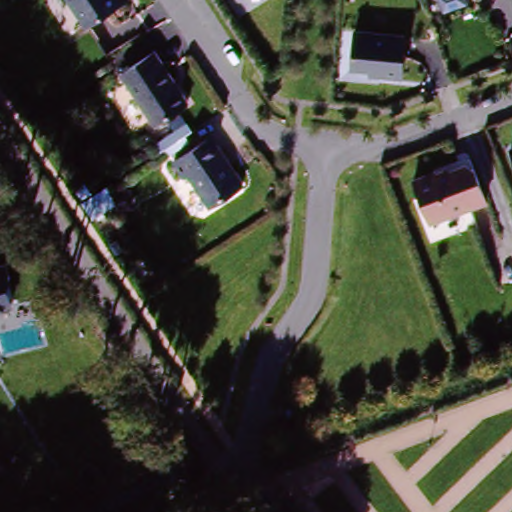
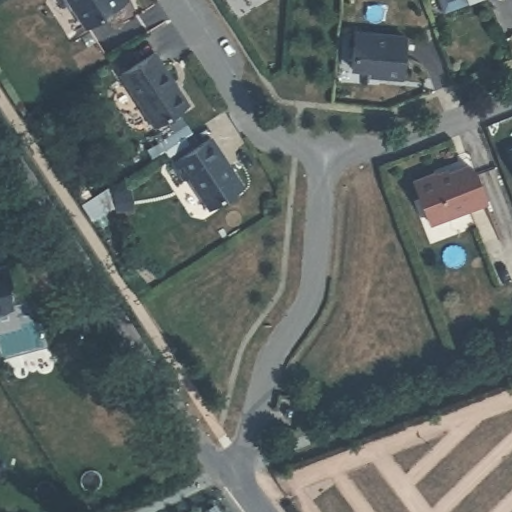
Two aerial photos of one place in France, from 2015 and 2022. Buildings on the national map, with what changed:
unchanged [(81,33),(62,0),(121,0),(125,6),(81,33)]
unchanged [(406,40),(402,81),(372,79),(370,74),(353,71),(357,36),(406,40)]
unchanged [(156,55),(188,107),(154,128),(123,76),(156,55)]
unchanged [(212,142),(245,189),(212,211),(190,181),(185,181),(176,166),(212,142)]
unchanged [(435,174),(437,178),(469,168),(476,172),(487,204),(430,223),(416,181),(435,174)]
unchanged [(0,312),(0,268),(9,309),(0,312)]

